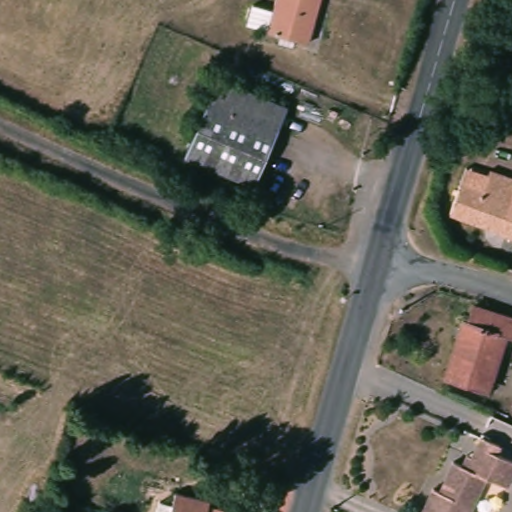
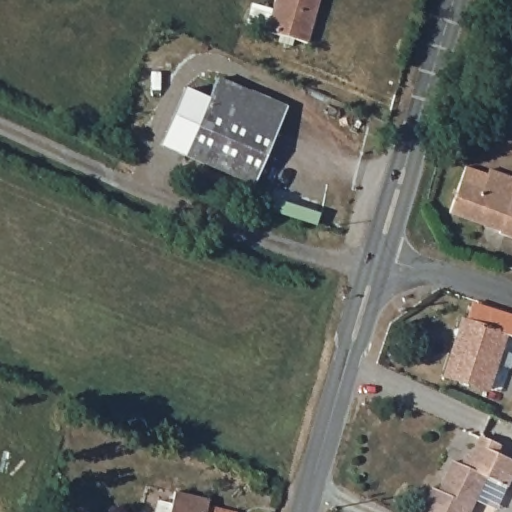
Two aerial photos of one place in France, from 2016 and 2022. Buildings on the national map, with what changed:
unchanged [(271,31),(281,0),(323,0),(310,44),(271,31)]
unchanged [(290,111),(255,187),(186,154),(223,79),(290,111)]
unchanged [(488,174),(512,179),(512,239),(502,237),(502,234),(452,221),(460,189),(482,194),(488,174)]
unchanged [(503,335),(488,389),(440,377),(455,318),(459,319),(465,305),(512,315),(512,324),(509,335),(503,335)]
unchanged [(452,460),(462,464),(468,448),(473,450),(480,435),(498,443),(495,451),(512,458),(512,469),(506,484),(484,475),(468,512),(422,512),(432,488),(439,491),(452,460)]
unchanged [(150,508),(163,509),(165,499),(208,512),(149,512),(150,508)]
unchanged [(26,505),(42,512),(24,512),(26,505)]

